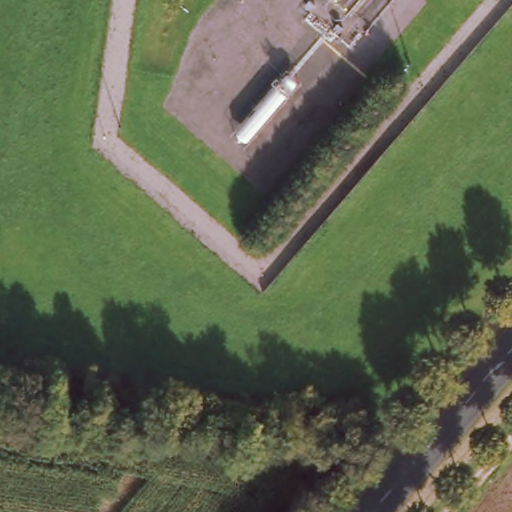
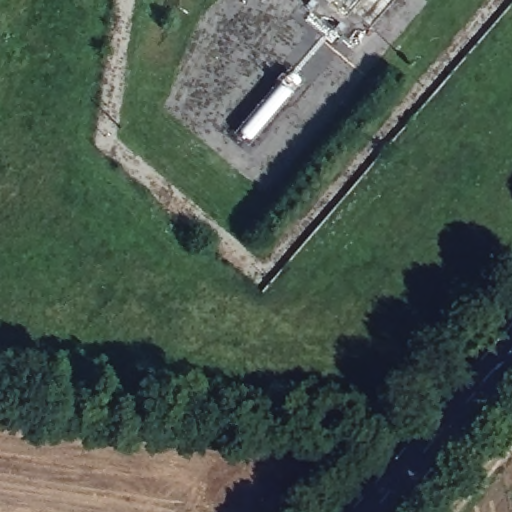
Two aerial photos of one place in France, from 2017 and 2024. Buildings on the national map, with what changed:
unchanged [(251,146),(237,136),(288,75),(300,85),(251,146)]

